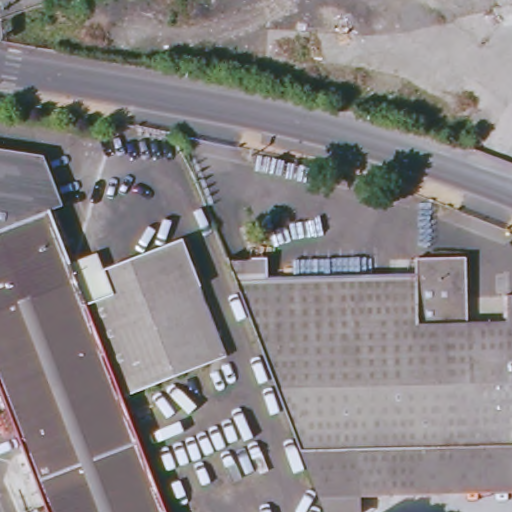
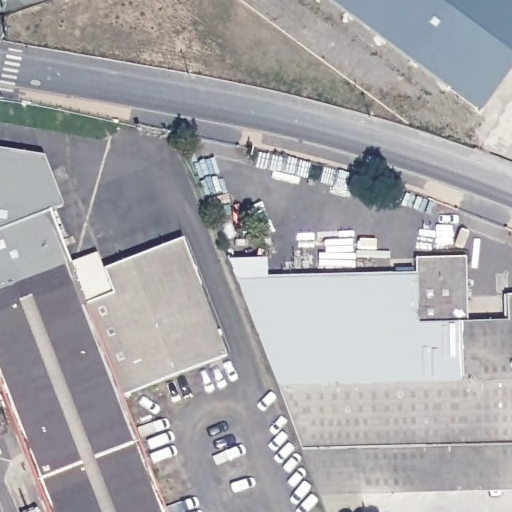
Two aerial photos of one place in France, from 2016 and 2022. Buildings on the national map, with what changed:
new [(512,69),(480,112),(326,0),(512,0),(512,69)]
unchanged [(45,154),(65,206),(52,211),(71,262),(97,253),(102,267),(172,240),(180,236),(222,342),(212,346),(117,382),(167,512),(48,512),(0,385),(0,149),(45,154)]
unchanged [(364,512),(329,512),(325,501),(307,455),(241,283),(236,269),(235,264),(275,264),(275,282),(420,279),(420,260),(472,259),(475,324),(512,324),(512,495),(364,499),(364,512)]

